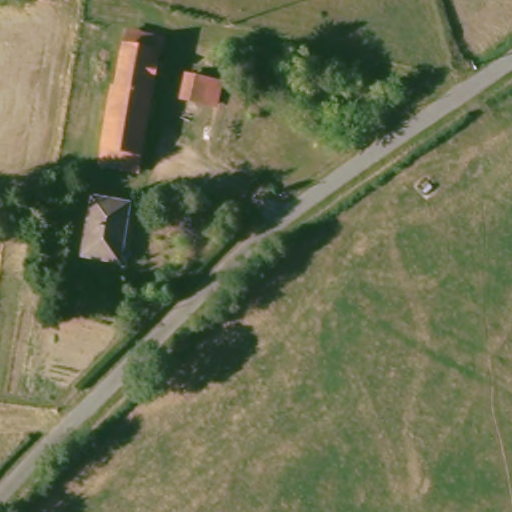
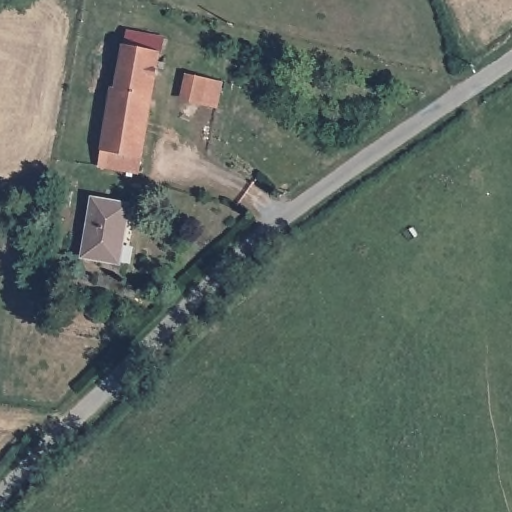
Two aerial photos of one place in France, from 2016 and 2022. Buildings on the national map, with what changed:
unchanged [(94,170),(97,153),(109,93),(112,93),(119,51),(122,36),(159,43),(157,57),(137,160),(134,176),(94,170)]
unchanged [(205,76),(200,96),(185,92),(188,74),(205,76)]
unchanged [(125,202),(119,234),(115,234),(112,257),(79,251),(89,195),(125,202)]

